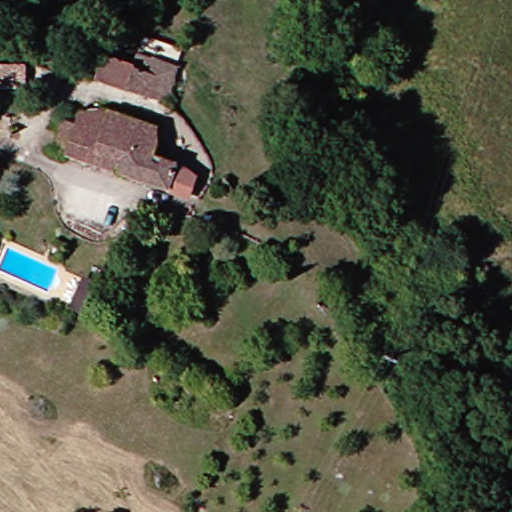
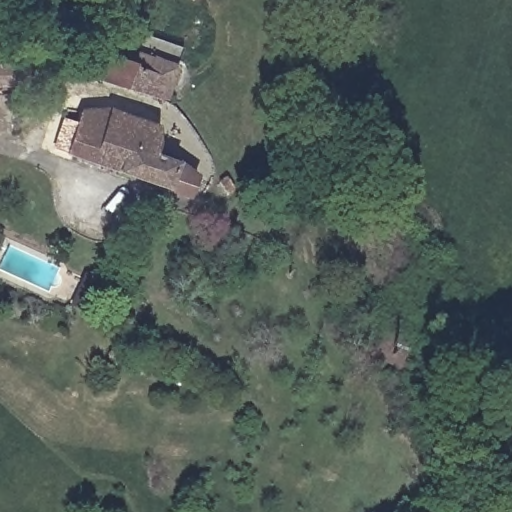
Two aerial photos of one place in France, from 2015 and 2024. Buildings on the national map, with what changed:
unchanged [(154,96),(103,79),(111,53),(136,61),(140,50),(155,54),(179,63),(174,77),(165,100),(154,96)]
unchanged [(9,56),(9,76),(0,77),(0,57),(9,56)]
unchanged [(162,155),(182,162),(173,188),(62,150),(74,114),(96,110),(110,115),(112,112),(161,128),(162,155)]
unchanged [(99,316),(80,307),(93,280),(111,289),(99,316)]

